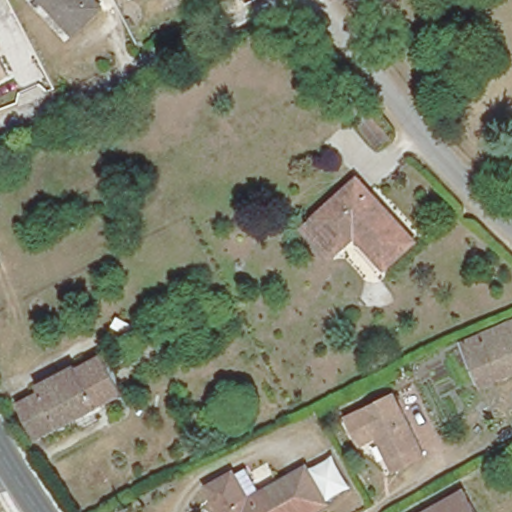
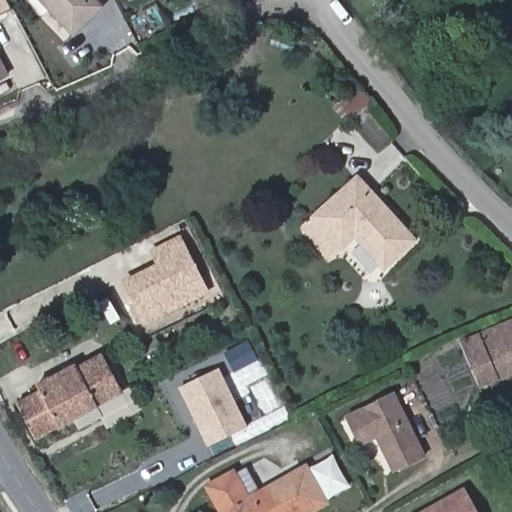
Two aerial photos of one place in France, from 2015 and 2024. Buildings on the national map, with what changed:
unchanged [(102,8),(73,34),(41,0),(94,0),(102,8)]
unchanged [(1,46),(0,50),(0,44),(1,46)]
unchanged [(11,76),(0,82),(0,55),(11,76)]
unchanged [(416,241),(386,269),(355,236),(330,259),(303,229),(359,179),(416,241)]
new [(157,265),(150,251),(182,236),(210,292),(144,325),(122,282),(157,265)]
unchanged [(463,343),(512,322),(512,373),(481,386),(463,343)]
unchanged [(78,367),(103,354),(123,392),(98,405),(99,406),(37,439),(18,402),(41,390),(38,385),(77,365),(78,367)]
new [(179,388),(220,368),(249,428),(208,448),(179,388)]
unchanged [(421,456),(390,472),(373,437),(356,446),(342,418),(390,394),(421,456)]
unchanged [(333,458),(350,490),(327,504),(308,469),(333,458)]
unchanged [(230,476),(245,503),(302,471),(322,508),(315,512),(215,512),(203,491),(230,476)]
unchanged [(474,512),(414,512),(459,486),(474,512)]

